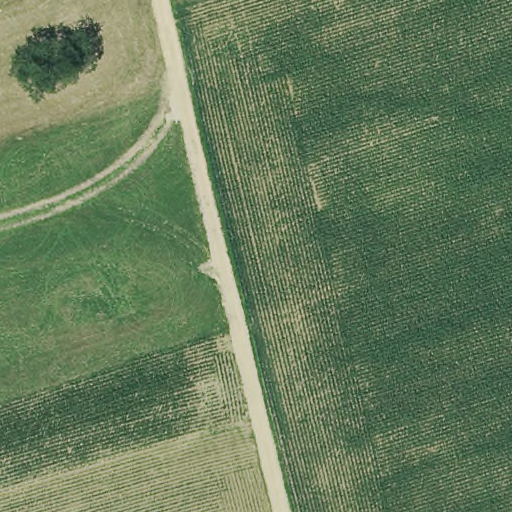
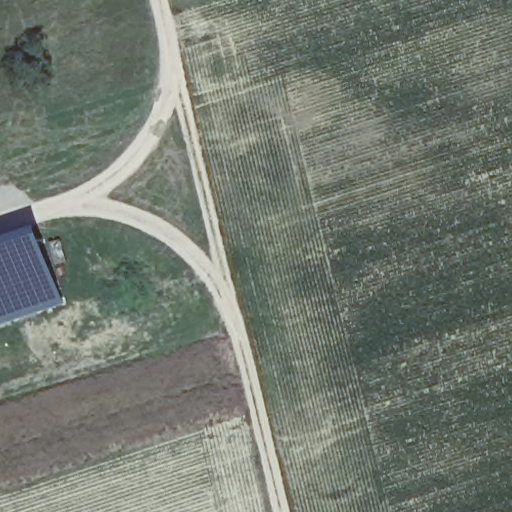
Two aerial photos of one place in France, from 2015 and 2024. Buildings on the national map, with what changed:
new [(67,303),(0,325),(0,238),(42,226),(67,303)]

